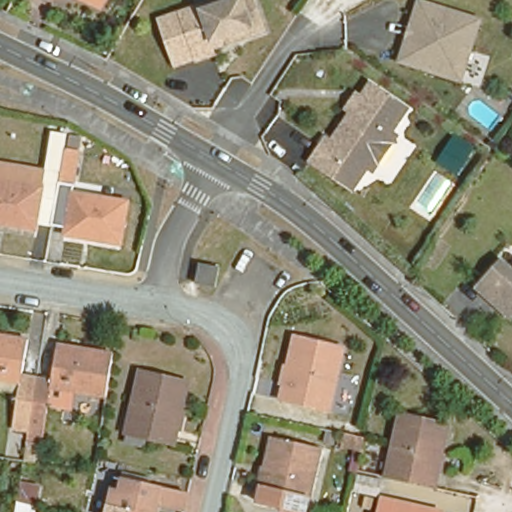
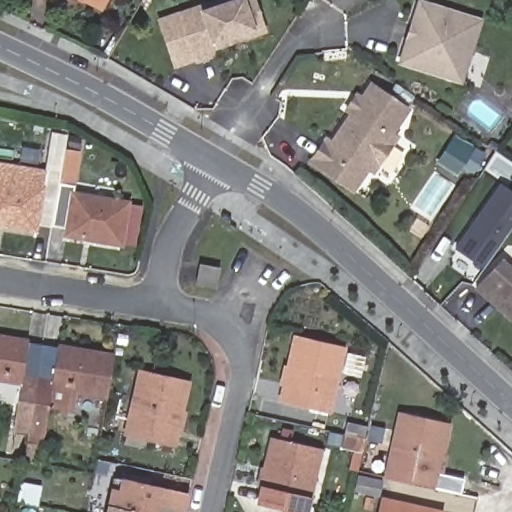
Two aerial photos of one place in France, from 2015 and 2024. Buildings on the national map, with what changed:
unchanged [(85,0),(104,0),(100,7),(85,0)]
unchanged [(252,0),(264,35),(238,44),(233,41),(230,42),(229,46),(211,52),(214,59),(197,65),(196,62),(180,17),(230,0),(252,0)]
unchanged [(406,51),(415,23),(420,6),(481,26),(461,89),(399,69),(406,51)]
unchanged [(196,62),(175,70),(159,24),(180,17),(196,62)]
unchanged [(363,175),(349,195),(305,166),(318,146),(326,151),(348,120),(339,115),(349,100),(357,105),(368,90),(403,115),(387,139),(394,144),(386,155),(378,167),(370,180),(363,175)]
unchanged [(469,155),(455,175),(439,164),(452,144),(469,155)]
unchanged [(128,203),(121,245),(65,235),(66,227),(52,225),(37,222),(35,230),(0,225),(0,169),(45,176),(44,181),(58,184),(59,184),(60,146),(74,147),(74,186),(72,194),(128,203)]
new [(453,249),(499,183),(512,192),(512,227),(482,269),(453,249)]
unchanged [(214,262),(210,281),(192,278),(195,259),(214,262)]
unchanged [(474,303),(502,265),(512,272),(512,330),(489,315),(474,303)]
unchanged [(24,431),(8,430),(15,382),(0,380),(0,336),(22,340),(17,373),(32,376),(24,431)]
unchanged [(276,403),(290,342),(330,351),(338,353),(332,380),(325,415),(276,403)]
unchanged [(24,431),(32,376),(48,378),(54,345),(109,353),(102,396),(74,392),(71,409),(44,405),(38,442),(34,442),(31,463),(19,461),(22,440),(24,431)]
unchanged [(174,445),(147,438),(145,445),(126,440),(127,434),(126,434),(133,399),(139,370),(147,372),(187,381),(174,445)]
unchanged [(388,445),(395,416),(402,418),(443,427),(428,492),(380,481),(388,445)]
unchanged [(280,487),(277,502),(248,495),(262,434),(302,443),(310,445),(303,471),(298,492),(280,487)]
unchanged [(348,441),(359,443),(357,455),(336,450),(339,439),(348,441)]
unchanged [(379,485),(375,503),(347,496),(351,478),(379,485)]
unchanged [(180,510),(153,503),(152,512),(103,512),(108,488),(117,490),(119,479),(183,493),(180,510)]
unchanged [(17,500),(25,502),(38,505),(37,512),(16,512),(17,500)]
unchanged [(368,512),(360,512),(362,502),(369,503),(368,512)]
unchanged [(376,504),(415,512),(374,512),(376,504)]

